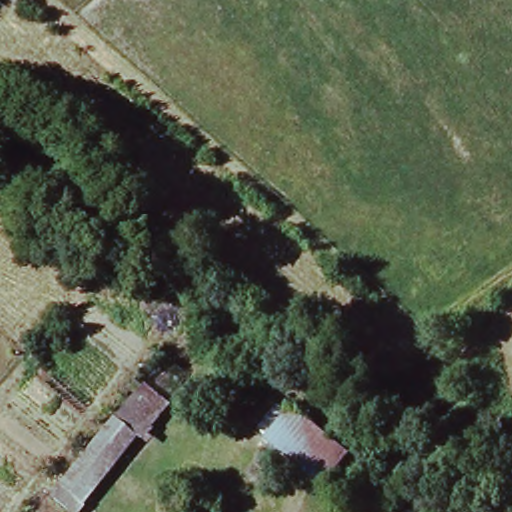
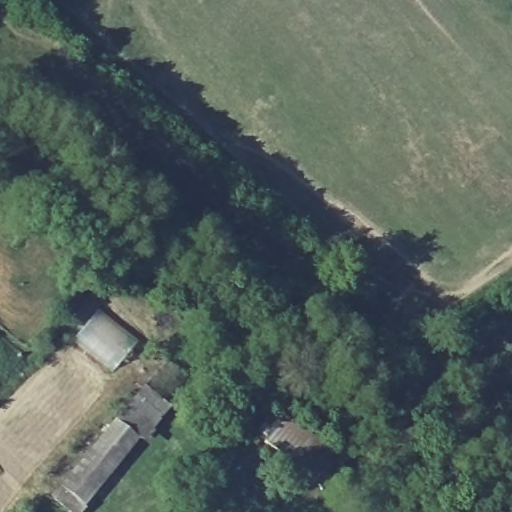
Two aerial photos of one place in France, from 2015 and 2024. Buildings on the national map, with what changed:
new [(115,369),(88,347),(91,343),(83,332),(96,314),(101,319),(98,321),(101,323),(104,319),(136,345),(130,352),(115,369)]
unchanged [(149,393),(168,414),(66,510),(46,491),(149,393)]
unchanged [(321,494),(258,444),(288,411),(346,457),(321,494)]

